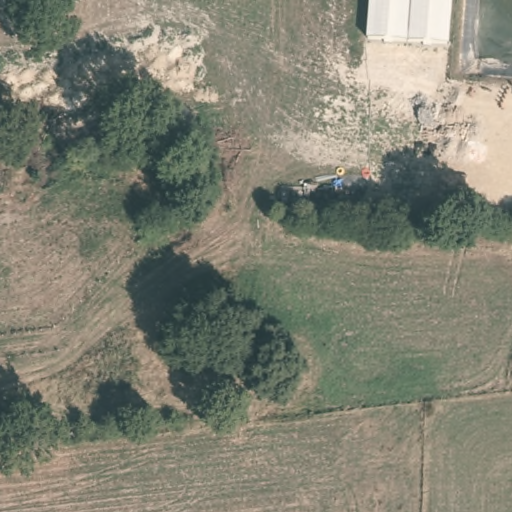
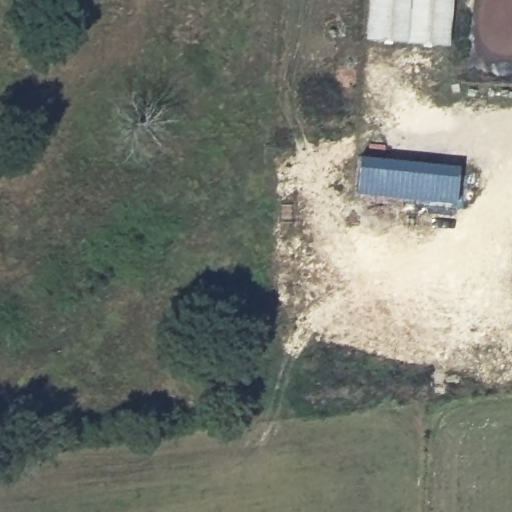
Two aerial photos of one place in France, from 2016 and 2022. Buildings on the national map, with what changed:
unchanged [(450,44),(366,37),(369,0),(453,0),(450,44)]
new [(459,202),(359,192),(362,154),(462,165),(459,202)]

